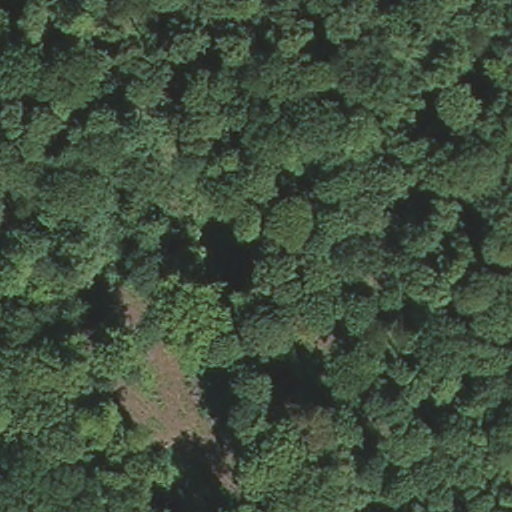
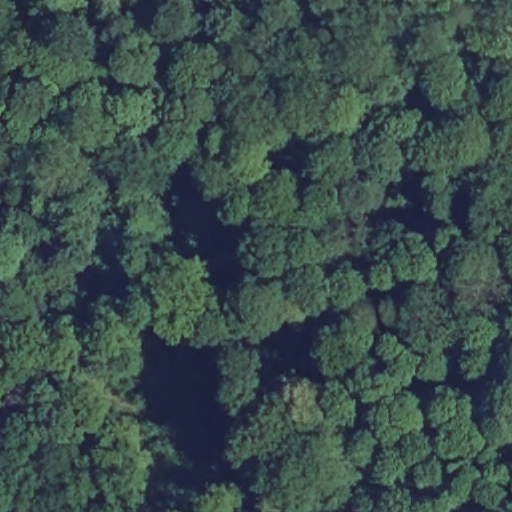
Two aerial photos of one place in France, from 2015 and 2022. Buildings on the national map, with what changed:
[]

